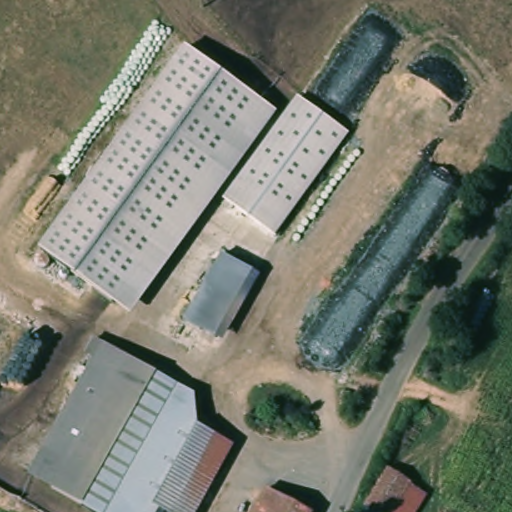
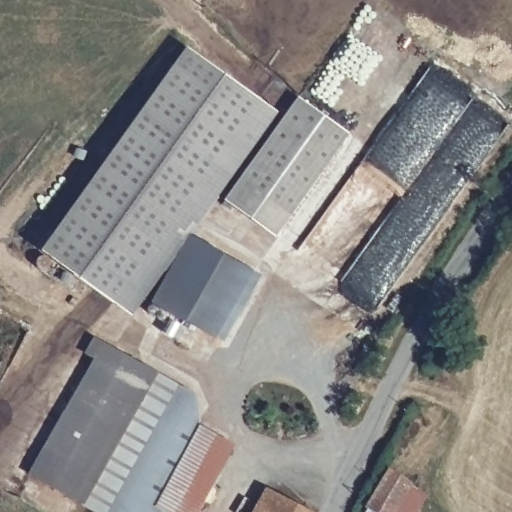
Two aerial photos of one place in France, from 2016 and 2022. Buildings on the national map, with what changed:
unchanged [(277,112),(130,316),(40,251),(185,47),(277,112)]
unchanged [(275,236),(223,199),(296,96),(349,132),(275,236)]
unchanged [(260,275),(223,345),(186,322),(221,254),(260,275)]
unchanged [(158,372),(87,505),(56,488),(70,462),(47,451),(105,343),(158,372)]
unchanged [(158,372),(197,396),(194,435),(168,482),(155,505),(161,508),(159,512),(101,512),(87,505),(158,372)]
unchanged [(233,442),(195,512),(169,512),(161,508),(155,505),(168,482),(194,435),(199,424),(204,426),(233,442)]
unchanged [(415,497),(406,512),(377,512),(393,484),(415,497)]
unchanged [(266,487),(312,511),(311,512),(253,512),(266,487)]

